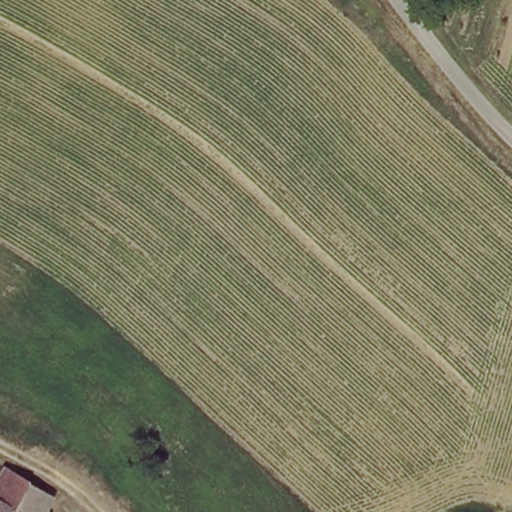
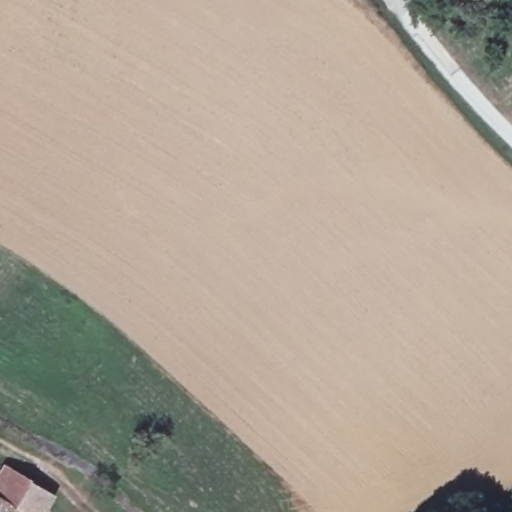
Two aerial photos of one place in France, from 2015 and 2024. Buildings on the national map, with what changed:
unchanged [(17,482),(33,492),(49,503),(44,512),(0,512),(0,478),(3,473),(17,482)]

